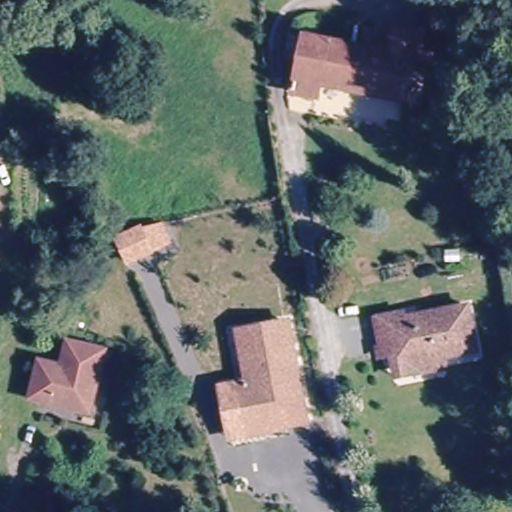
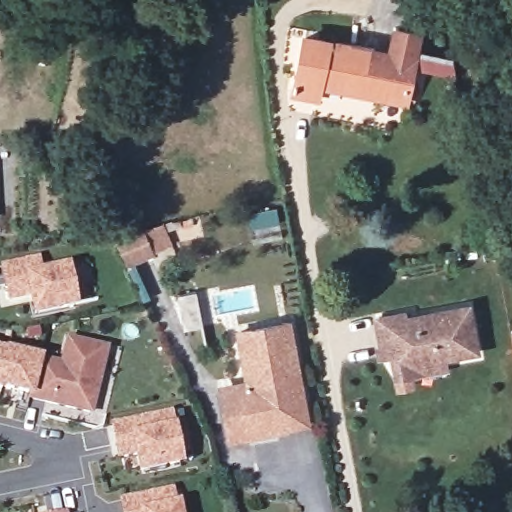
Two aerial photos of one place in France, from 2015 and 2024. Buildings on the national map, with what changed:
unchanged [(393,28),(418,35),(401,105),(315,85),(310,100),(287,94),(301,34),(388,53),(393,28)]
unchanged [(144,226),(145,231),(163,223),(172,244),(126,265),(115,239),(144,226)]
new [(42,270),(70,265),(78,308),(32,320),(28,295),(6,300),(0,271),(0,266),(39,258),(42,270)]
unchanged [(400,370),(397,358),(393,340),(379,343),(373,310),(401,305),(402,311),(468,298),(475,333),(460,336),(461,346),(444,350),(446,361),(400,370)]
unchanged [(231,446),(222,392),(244,390),(256,387),(246,336),(295,327),(314,425),(295,430),(296,433),(254,441),(231,446)]
unchanged [(100,350),(85,413),(25,399),(35,361),(56,366),(64,342),(100,350)]
new [(35,361),(25,399),(0,392),(0,351),(35,361)]
new [(178,426),(186,465),(138,475),(134,453),(117,458),(110,422),(174,407),(178,426)]
new [(179,504),(180,512),(122,512),(120,496),(170,486),(179,504)]

